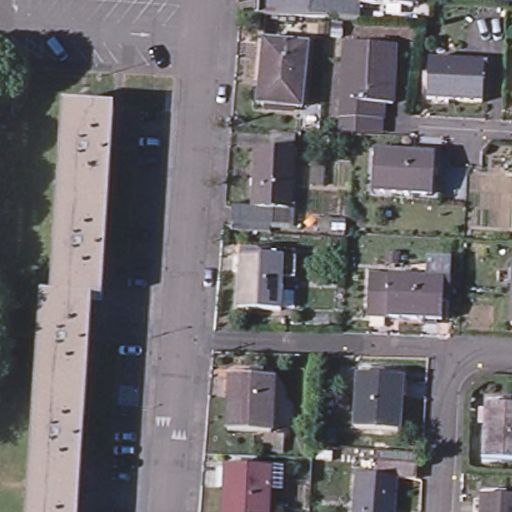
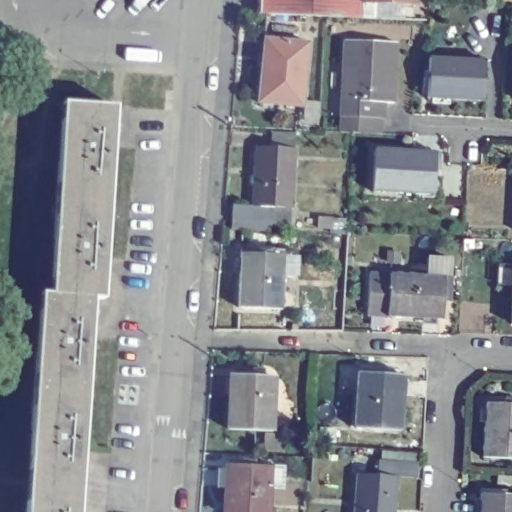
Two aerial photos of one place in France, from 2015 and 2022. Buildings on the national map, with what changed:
unchanged [(323,21),(260,18),(261,0),(361,0),(360,22),(323,21)]
unchanged [(412,25),(360,22),(361,0),(413,0),(412,25)]
unchanged [(352,138),(337,138),(338,118),(340,100),(342,42),(393,45),(392,80),(387,80),(386,103),(382,102),(380,120),(379,140),(352,138)]
unchanged [(307,47),(302,111),(259,106),(265,43),(307,47)]
unchanged [(485,59),(483,99),(427,97),(430,56),(485,59)]
unchanged [(67,101),(118,106),(101,298),(90,297),(49,294),(67,101)]
unchanged [(371,192),(374,149),(411,151),(403,194),(371,192)]
unchanged [(225,221),(225,206),(245,208),(251,151),(292,155),(287,212),(265,210),(263,225),(225,221)]
unchanged [(435,152),(431,196),(403,194),(411,151),(435,152)]
unchanged [(280,316),(238,313),(242,259),(243,252),(270,255),(270,261),(283,262),(280,316)]
unchanged [(425,261),(443,262),(442,280),(440,321),(382,317),(388,275),(390,275),(424,278),(425,261)]
unchanged [(512,284),(512,322),(510,322),(512,284)]
unchanged [(20,512),(39,293),(49,294),(90,297),(71,512),(20,512)]
unchanged [(399,378),(397,431),(367,429),(356,429),(358,375),(376,376),(399,378)]
unchanged [(271,379),(270,434),(228,433),(230,378),(271,379)]
unchanged [(512,466),(482,464),(486,409),(512,411),(512,466)]
unchanged [(267,465),(265,512),(221,512),(222,464),(267,465)]
unchanged [(373,480),(374,466),(415,468),(413,483),(395,482),(393,512),(350,512),(353,479),(357,479),(373,480)]
unchanged [(512,512),(480,512),(481,494),(512,496),(512,512)]

